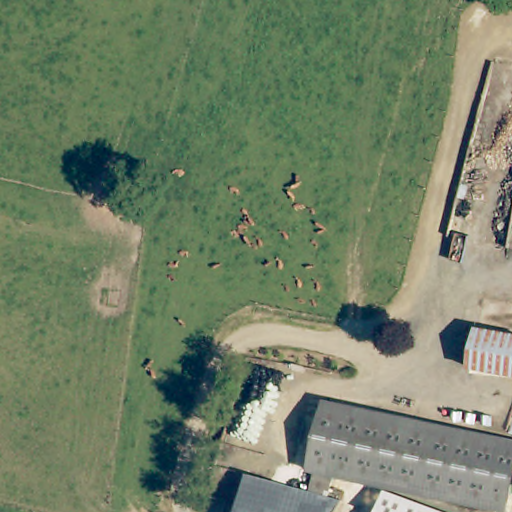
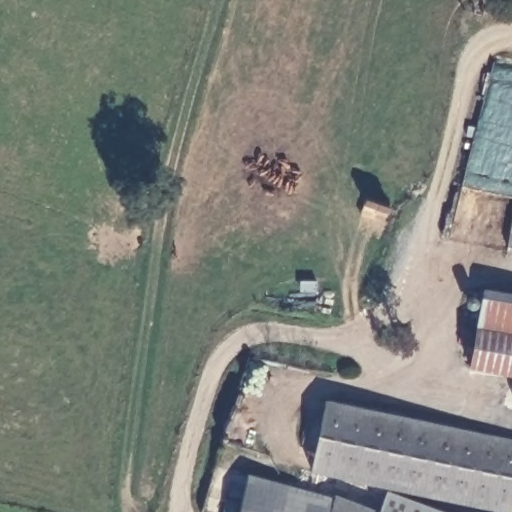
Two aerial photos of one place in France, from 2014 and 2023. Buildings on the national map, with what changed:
new [(486,288),(512,293),(512,337),(477,331),(486,288)]
unchanged [(477,331),(512,337),(512,374),(470,367),(477,331)]
unchanged [(512,501),(510,512),(505,512),(336,476),(332,495),(313,491),(316,472),(310,470),(327,401),(512,439),(512,501)]
unchanged [(345,501),(335,512),(240,512),(250,476),(313,491),(332,495),(345,501)]
unchanged [(386,507),(401,512),(384,512),(386,507)]

